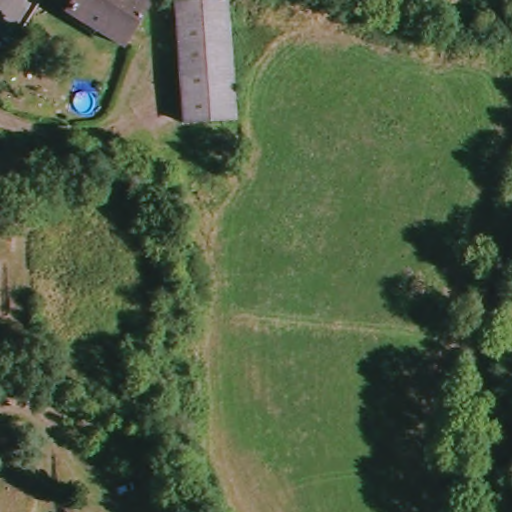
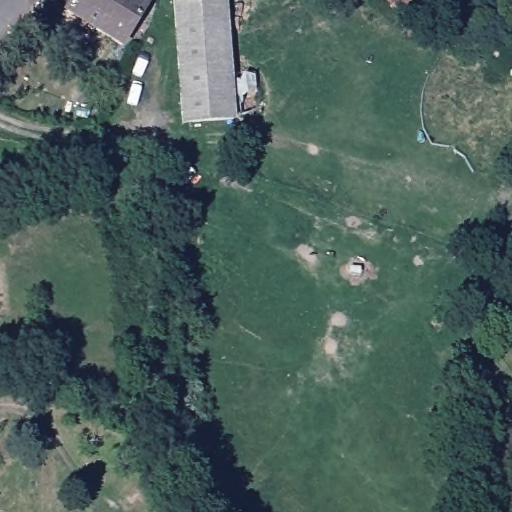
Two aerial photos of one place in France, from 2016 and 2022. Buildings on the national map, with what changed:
unchanged [(71,0),(146,0),(122,40),(67,7),(71,0)]
unchanged [(235,112),(186,116),(176,3),(226,0),(235,112)]
unchanged [(410,5),(385,0),(410,0),(410,5)]

